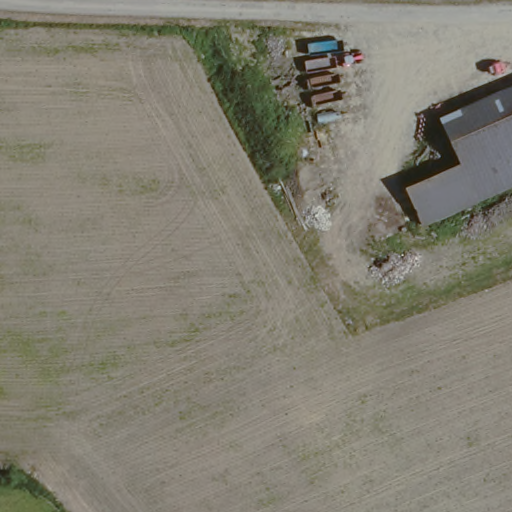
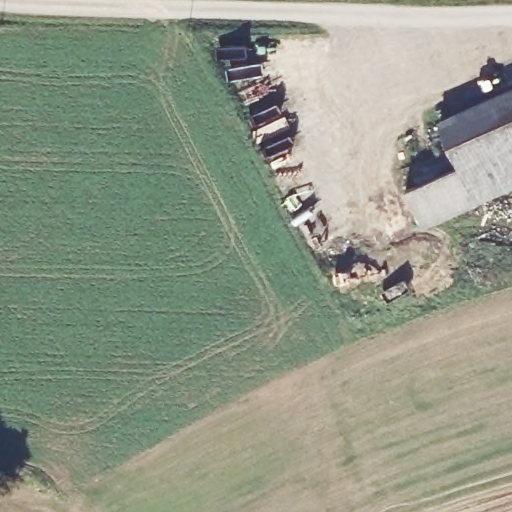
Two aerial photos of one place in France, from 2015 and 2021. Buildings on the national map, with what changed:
unchanged [(512,95),(512,192),(427,228),(409,187),(459,164),(444,123),(512,95)]

